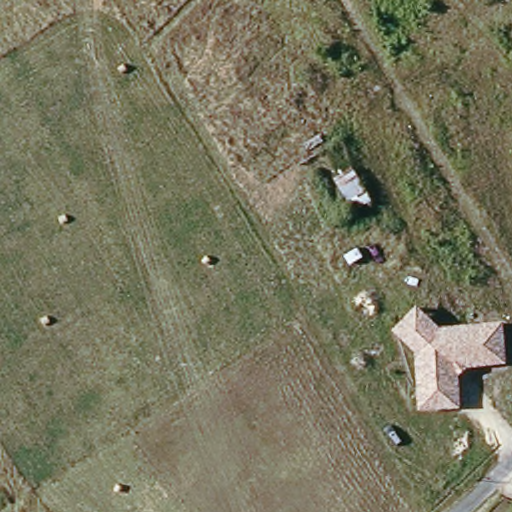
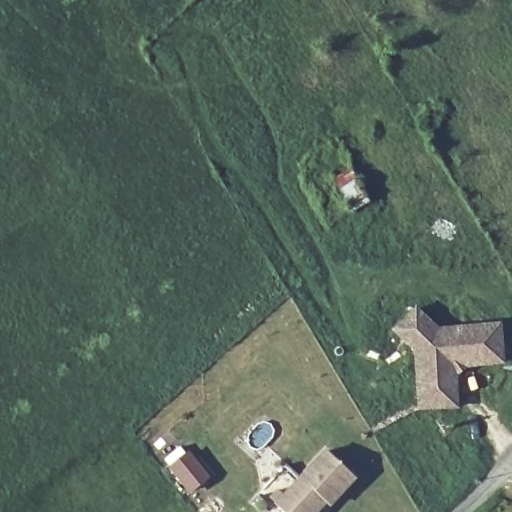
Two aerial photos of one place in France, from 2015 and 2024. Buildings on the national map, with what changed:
unchanged [(440,325),(504,322),(506,364),(468,367),(458,377),(460,409),(417,409),(415,351),(393,331),(417,306),(440,325)]
new [(330,508),(326,505),(319,512),(284,512),(275,504),(325,449),(357,478),(330,508)]
new [(190,454),(209,478),(191,492),(172,468),(190,454)]

